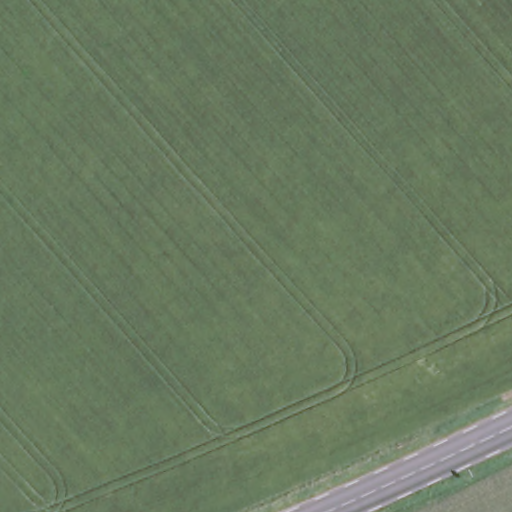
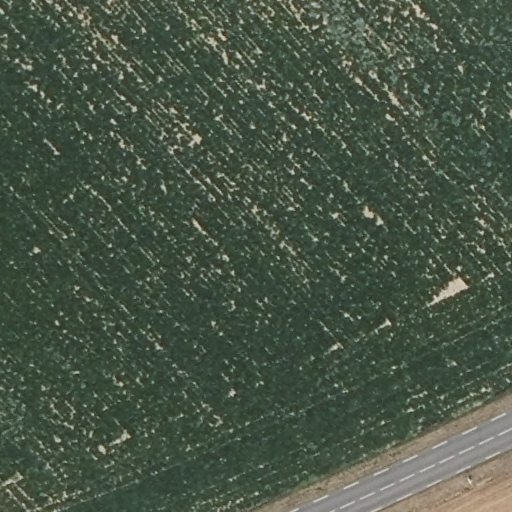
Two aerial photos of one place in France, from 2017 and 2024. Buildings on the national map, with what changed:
[]

